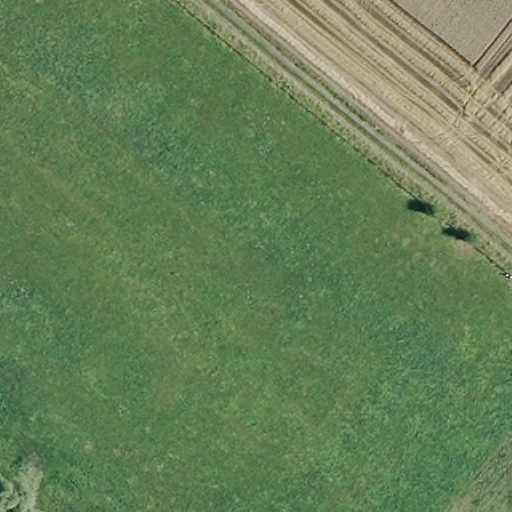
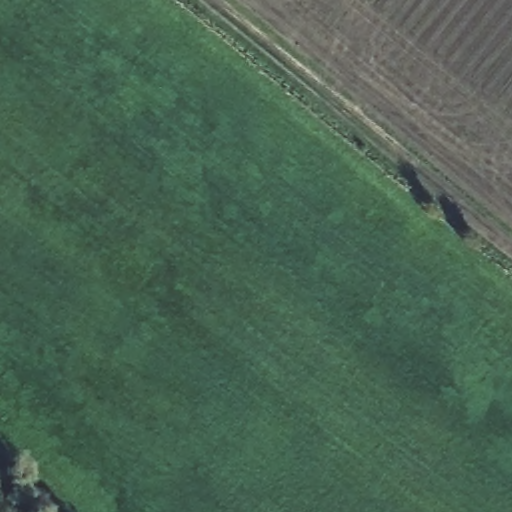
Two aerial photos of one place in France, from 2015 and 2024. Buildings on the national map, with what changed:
[]

